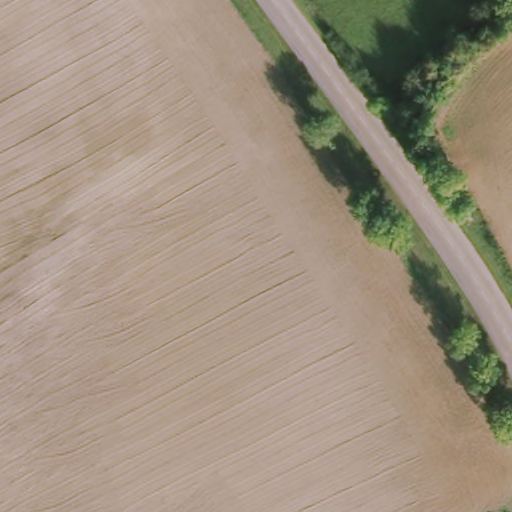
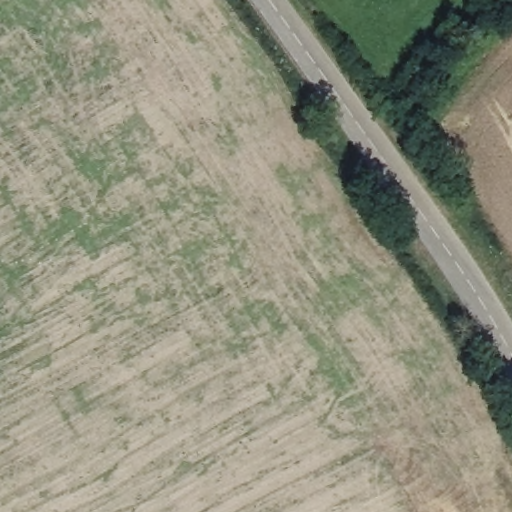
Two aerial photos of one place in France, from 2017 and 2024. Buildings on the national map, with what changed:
[]

